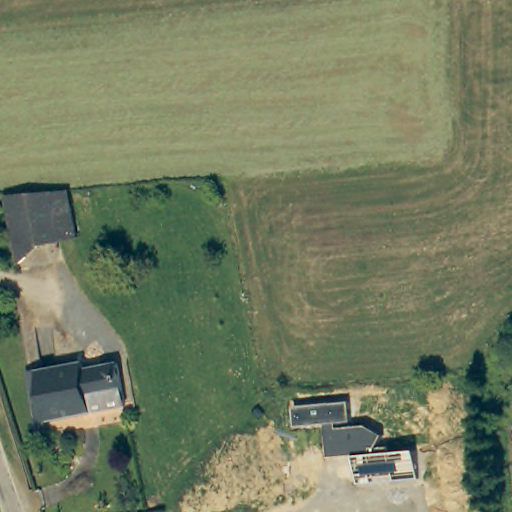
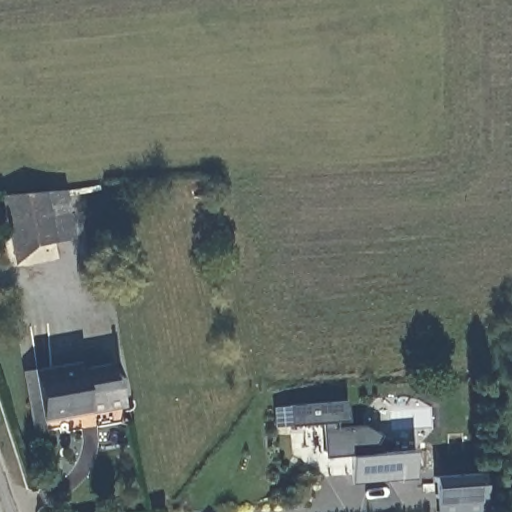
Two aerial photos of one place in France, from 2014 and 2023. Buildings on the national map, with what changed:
unchanged [(45,194),(64,192),(74,244),(54,245),(45,194)]
unchanged [(36,247),(16,268),(4,198),(45,194),(54,245),(36,247)]
unchanged [(90,413),(46,418),(48,431),(36,432),(24,371),(37,368),(78,362),(79,368),(116,362),(121,392),(123,408),(90,413)]
unchanged [(290,406),(346,401),(348,421),(333,423),(334,427),(365,425),(380,436),(369,452),(351,454),(324,456),(321,424),(292,426),(290,406)]
unchanged [(351,454),(369,452),(410,449),(416,478),(357,485),(351,454)]
new [(484,512),(435,512),(431,475),(479,471),(484,512)]

